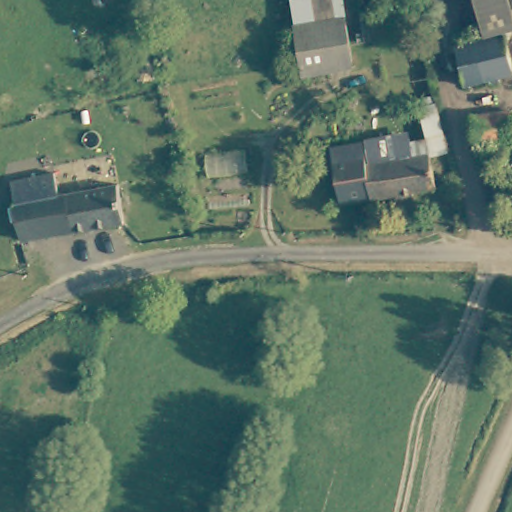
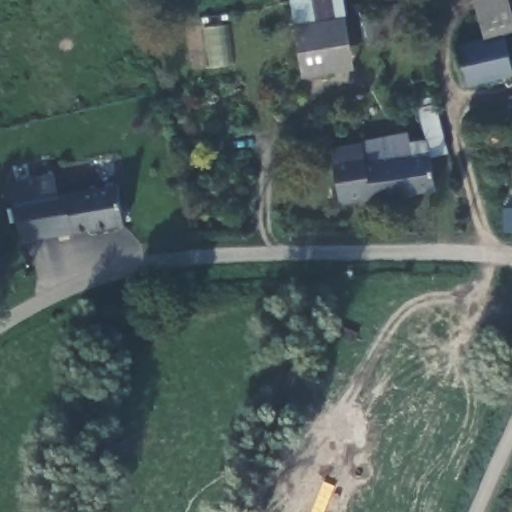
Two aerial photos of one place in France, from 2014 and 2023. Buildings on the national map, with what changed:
unchanged [(303,76),(290,0),(340,0),(352,68),(303,76)]
unchanged [(407,26),(356,36),(352,9),(372,6),(403,0),(407,26)]
unchanged [(512,0),(512,31),(500,34),(493,35),(481,38),(473,0),(512,0)]
unchanged [(453,32),(474,26),(477,39),(481,38),(493,35),(500,34),(509,74),(457,89),(447,46),(456,44),(453,32)]
unchanged [(392,198),(391,193),(369,197),(348,201),(341,163),(361,159),(359,146),(420,135),(415,106),(435,102),(442,131),(445,148),(425,152),(430,185),(407,190),(408,194),(392,198)]
unchanged [(471,120),(510,113),(512,129),(512,142),(476,148),(471,120)]
unchanged [(15,200),(18,200),(15,180),(44,175),(52,174),(55,194),(121,183),(125,206),(140,205),(141,221),(22,241),(15,200)]

